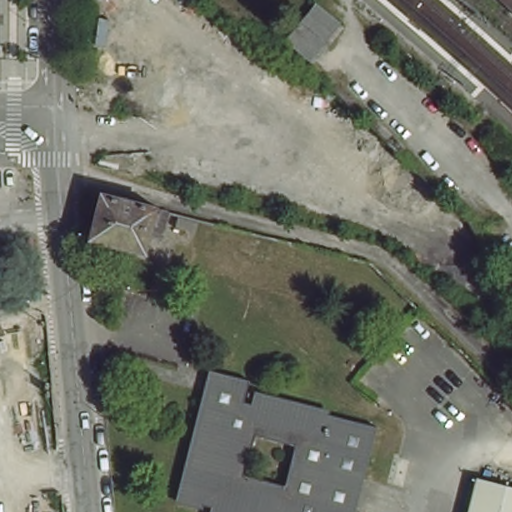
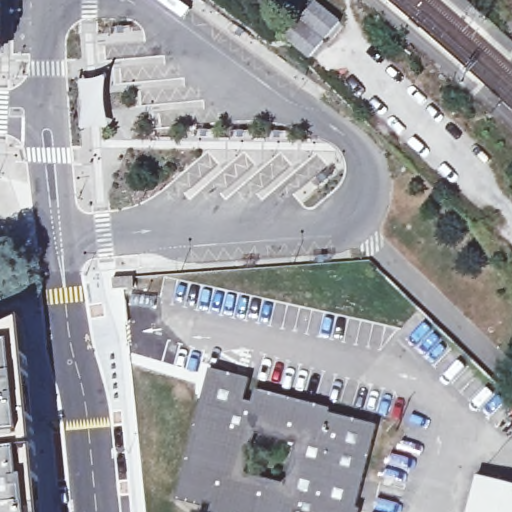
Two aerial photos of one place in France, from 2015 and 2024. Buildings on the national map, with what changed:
unchanged [(314,0),(336,19),(304,60),(280,37),(309,0),(314,0)]
demolished [(493,0),(512,0),(512,16),(493,0)]
demolished [(92,188),(159,204),(153,228),(140,224),(135,244),(83,233),(92,188)]
demolished [(197,232),(177,227),(180,212),(200,217),(197,232)]
new [(31,512),(0,512),(0,344),(15,338),(31,512)]
unchanged [(243,379),(237,401),(246,403),(248,393),(372,425),(349,512),(297,512),(289,510),(289,512),(204,512),(207,503),(197,500),(197,504),(175,499),(202,392),(198,390),(203,368),(243,379)]
unchanged [(476,474),(512,484),(512,512),(466,512),(476,474)]

